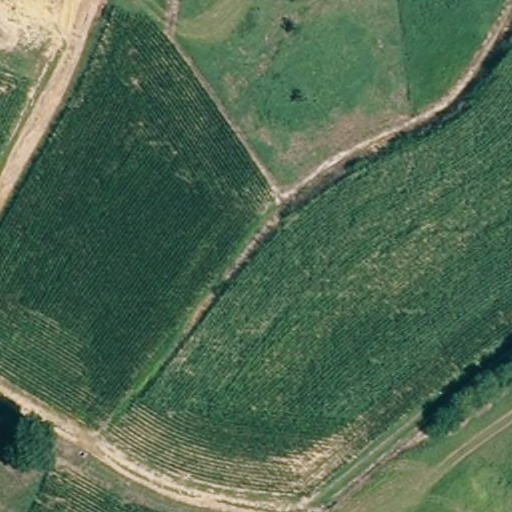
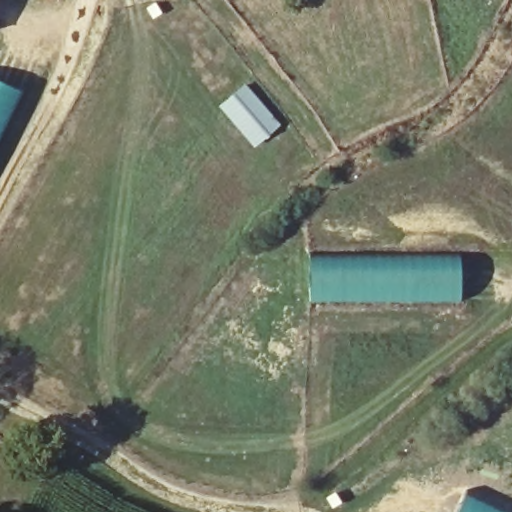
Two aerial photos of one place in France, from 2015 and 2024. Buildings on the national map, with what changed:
new [(280,110),(275,114),(272,111),(256,125),(249,116),(245,120),(225,98),(250,76),(280,110)]
new [(0,81),(21,91),(0,132),(0,81)]
new [(310,256),(403,255),(460,258),(460,297),(331,295),(309,291),(310,275),(310,256)]
new [(504,512),(456,512),(465,494),(504,512)]

